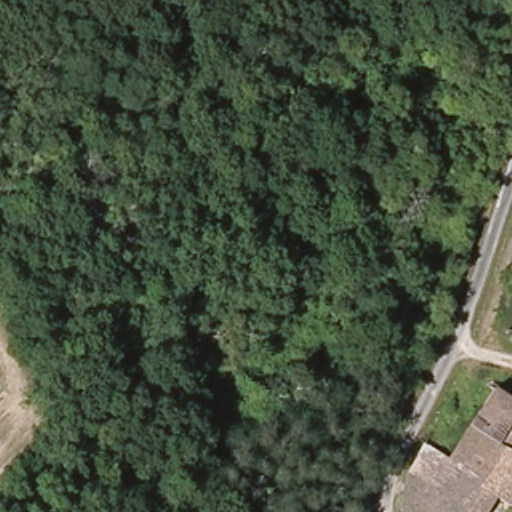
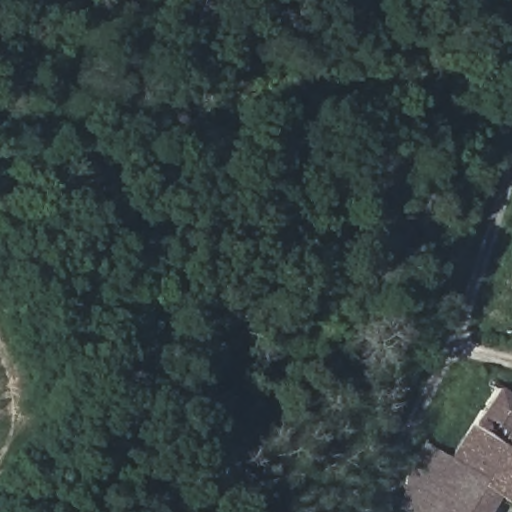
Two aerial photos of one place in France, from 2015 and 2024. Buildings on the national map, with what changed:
unchanged [(493,392),(512,404),(512,423),(496,446),(469,426),(493,392)]
unchanged [(512,423),(512,512),(509,512),(494,502),(487,512),(408,512),(402,508),(404,501),(408,477),(424,447),(445,461),(469,426),(496,446),(512,423)]

